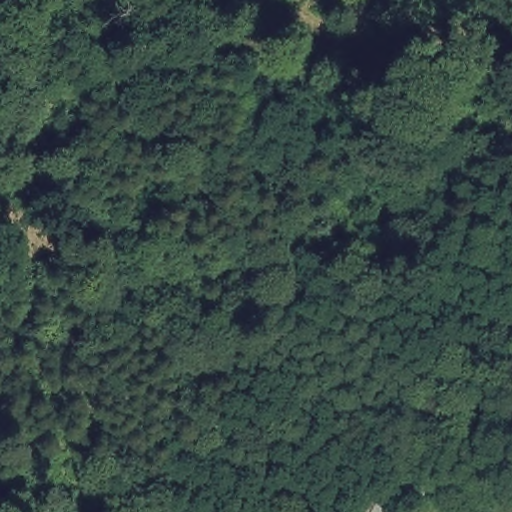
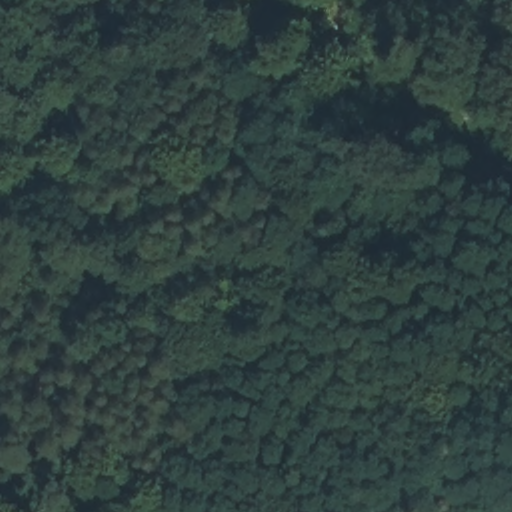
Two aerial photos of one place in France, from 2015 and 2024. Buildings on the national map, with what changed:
unchanged [(396,512),(347,512),(357,492),(396,512)]

